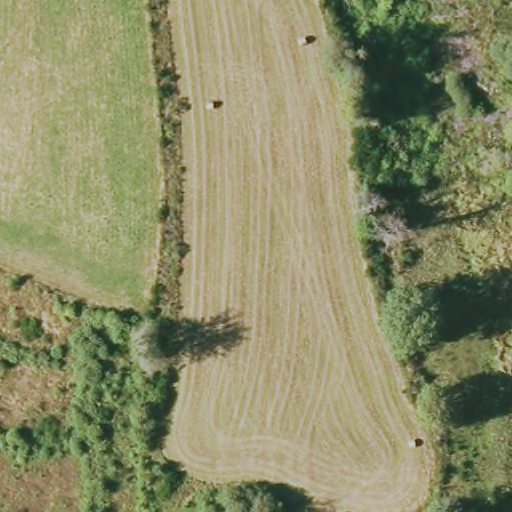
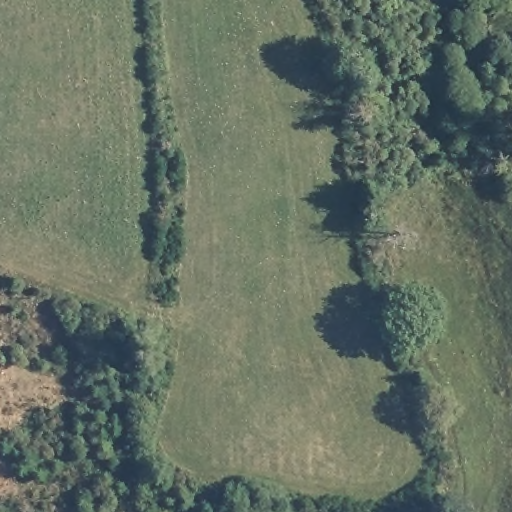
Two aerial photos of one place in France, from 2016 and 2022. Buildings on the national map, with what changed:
[]

